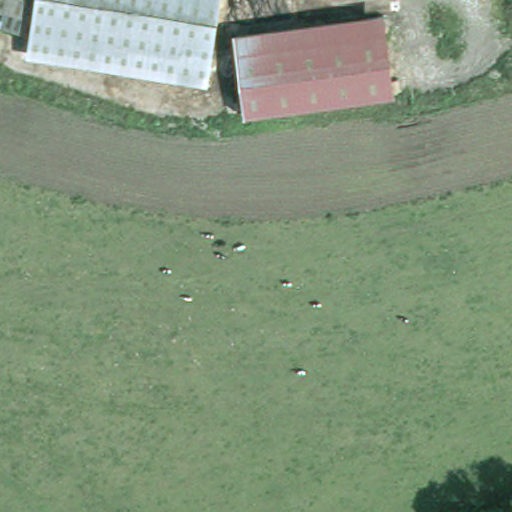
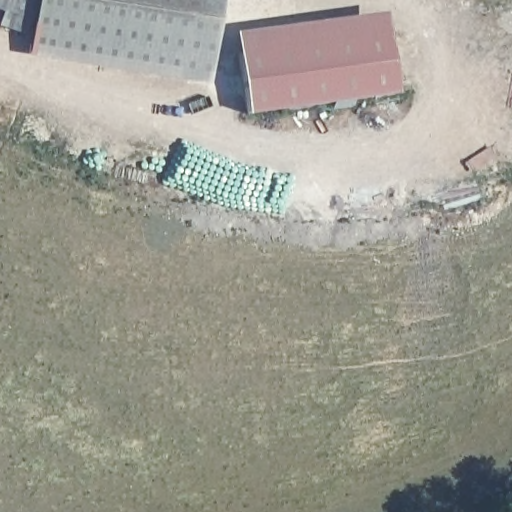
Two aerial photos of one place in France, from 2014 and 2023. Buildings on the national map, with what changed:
unchanged [(210,85),(24,55),(28,38),(0,29),(0,17),(1,13),(0,12),(0,0),(222,0),(210,85)]
unchanged [(388,29),(394,90),(243,103),(238,42),(388,29)]

